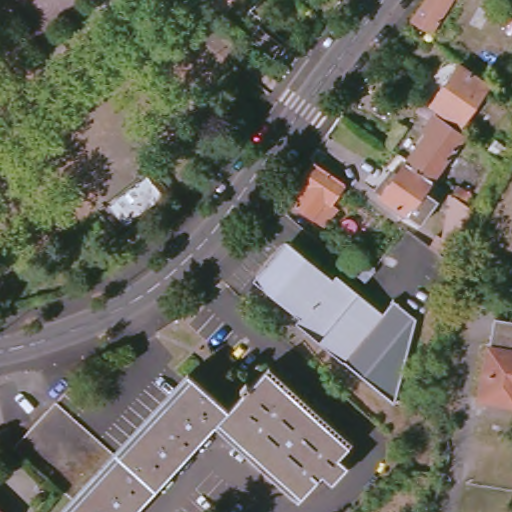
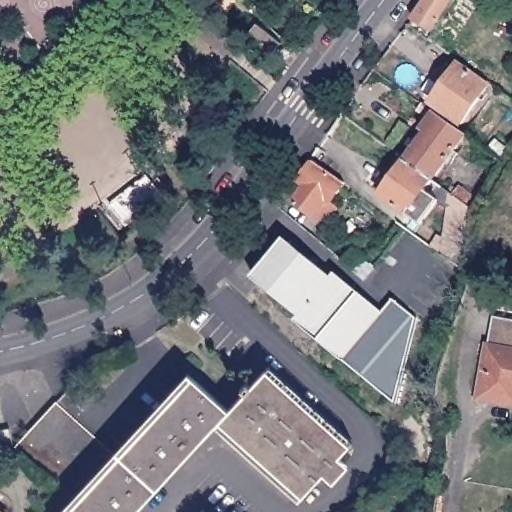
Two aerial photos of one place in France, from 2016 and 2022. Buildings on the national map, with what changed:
unchanged [(424,0),(453,0),(429,31),(411,16),(424,0)]
unchanged [(282,42),(272,55),(265,49),(248,36),(259,25),(282,42)]
unchanged [(463,129),(433,105),(465,65),(495,89),(463,129)]
unchanged [(407,161),(427,137),(422,133),(435,115),(465,139),(432,181),(407,161)]
unchanged [(332,205),(336,210),(322,227),(293,203),(308,185),(302,179),(317,160),(320,161),(347,185),(332,205)]
unchanged [(405,216),(380,197),(407,161),(432,181),(405,216)]
unchanged [(162,194),(125,224),(111,206),(118,200),(140,182),(147,176),(162,194)]
unchanged [(438,244),(447,215),(433,205),(442,194),(471,217),(455,276),(422,250),(431,238),(438,244)]
unchanged [(334,279),(339,273),(383,315),(395,301),(417,322),(392,408),(311,332),(303,321),(260,281),(295,243),(334,279)]
unchanged [(373,265),(374,265),(362,278),(343,261),(355,249),(373,265)]
unchanged [(512,404),(480,398),(494,319),(512,323),(512,404)]
unchanged [(225,415),(269,366),(350,440),(295,500),(215,427),(138,512),(67,512),(74,505),(63,495),(12,447),(53,407),(114,461),(187,381),(225,415)]
unchanged [(2,435),(13,455),(1,461),(0,460),(0,436),(2,435)]
unchanged [(3,512),(0,512),(0,510),(3,512)]

